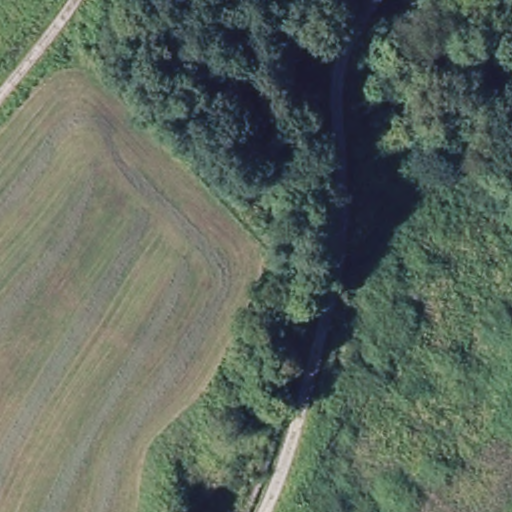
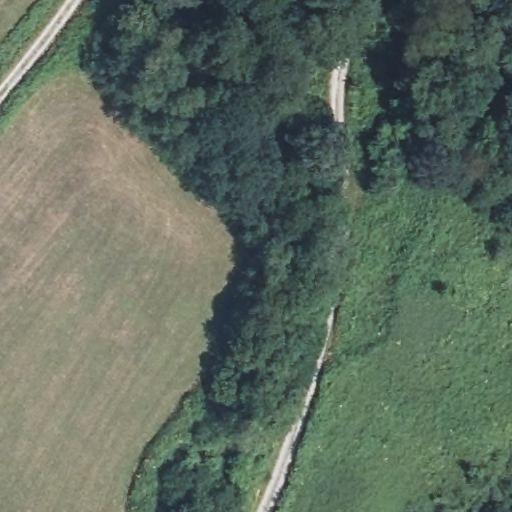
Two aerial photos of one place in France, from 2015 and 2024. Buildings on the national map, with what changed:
[]

